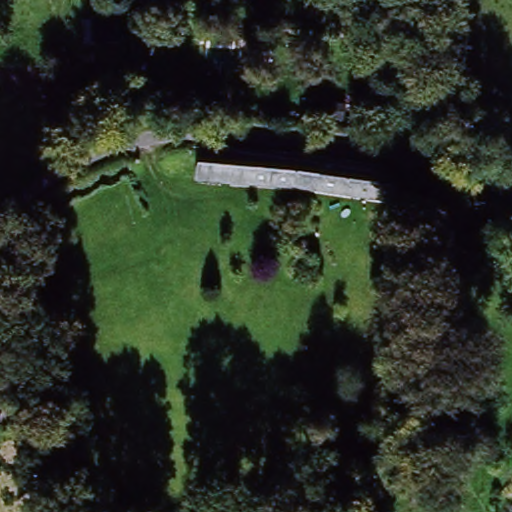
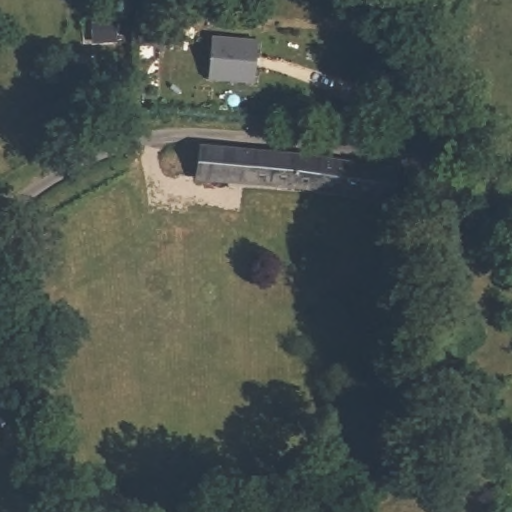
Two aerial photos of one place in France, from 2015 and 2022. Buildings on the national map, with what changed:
new [(212,36),(258,38),(255,81),(210,79),(212,36)]
unchanged [(197,64),(165,62),(166,41),(197,41),(197,64)]
unchanged [(185,175),(189,142),(311,156),(307,192),(185,175)]
unchanged [(385,175),(380,202),(307,192),(311,156),(385,175)]

